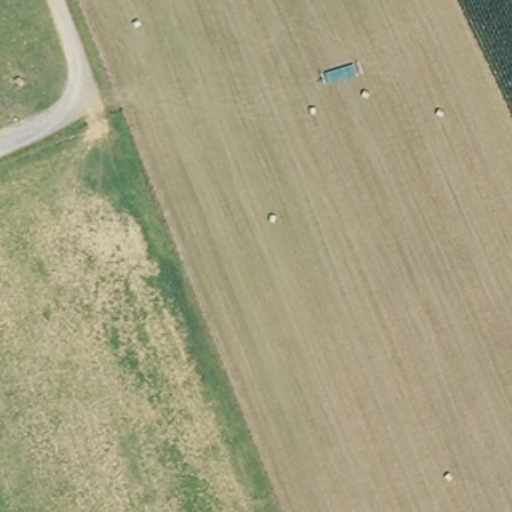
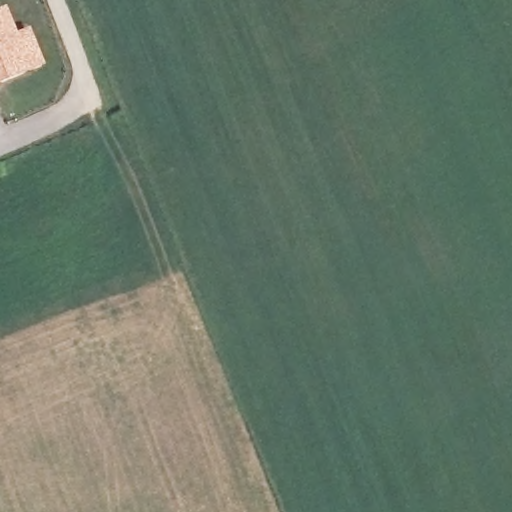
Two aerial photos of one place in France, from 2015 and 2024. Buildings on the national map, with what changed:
new [(0,79),(0,7),(5,5),(16,31),(29,26),(43,63),(0,79)]

